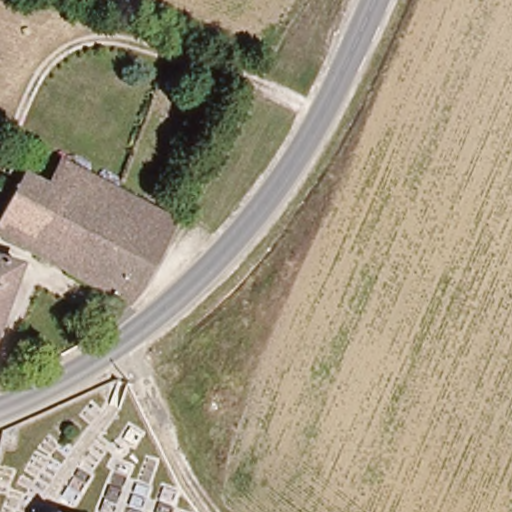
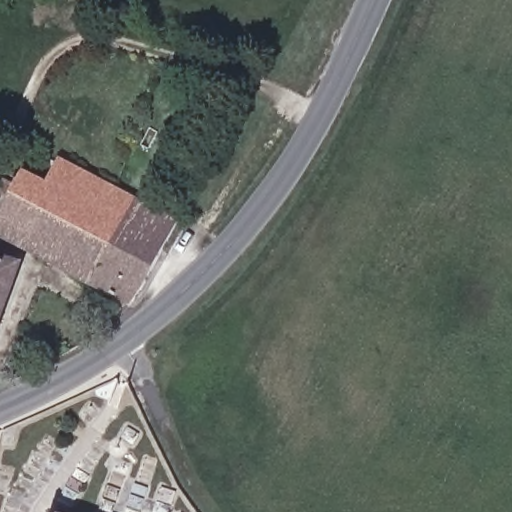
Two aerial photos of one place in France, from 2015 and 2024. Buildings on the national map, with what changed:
unchanged [(0,194),(0,158),(1,156),(37,173),(53,155),(175,216),(127,300),(0,234),(0,194)]
unchanged [(0,329),(0,267),(20,274),(0,329)]

